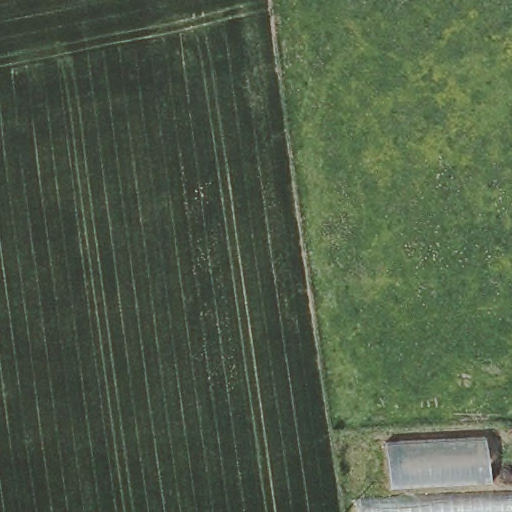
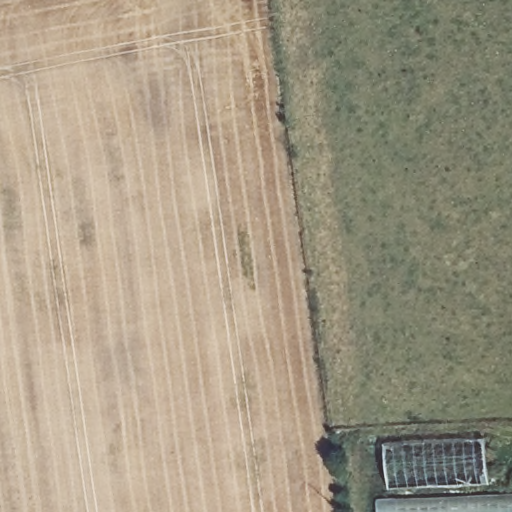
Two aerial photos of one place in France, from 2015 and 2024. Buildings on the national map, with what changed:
unchanged [(391,445),(489,431),(496,477),(397,491),(391,445)]

